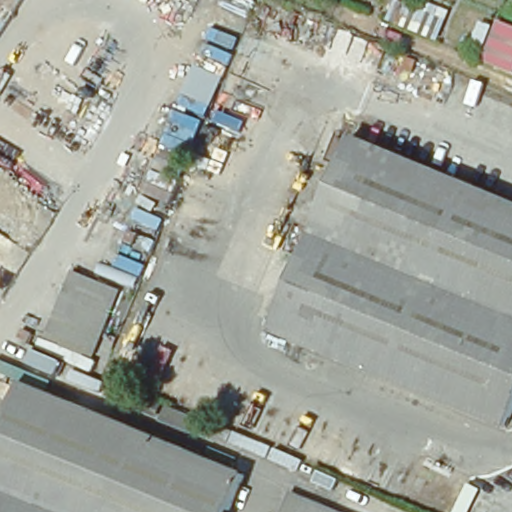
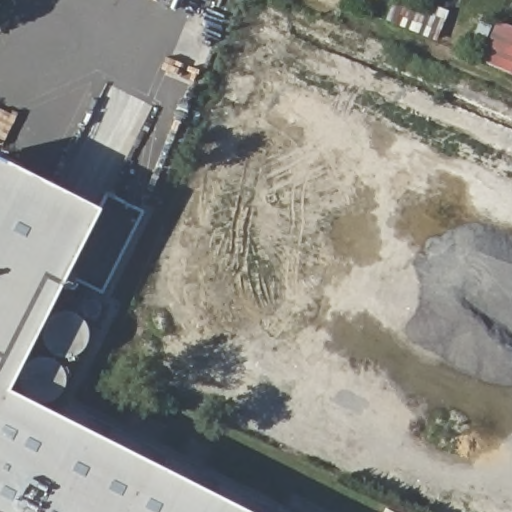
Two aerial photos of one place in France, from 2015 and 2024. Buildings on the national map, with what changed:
demolished [(18,0),(0,28),(0,0),(18,0)]
unchanged [(447,10),(435,38),(413,29),(425,0),(447,10)]
unchanged [(512,23),(512,70),(482,58),(499,18),(512,23)]
demolished [(512,211),(512,395),(491,436),(269,326),(362,137),(512,211)]
new [(99,199),(104,190),(143,209),(102,287),(66,271),(6,393),(250,512),(0,512),(0,150),(99,199)]
demolished [(91,355),(87,354),(81,366),(34,347),(42,335),(70,272),(117,290),(91,355)]
demolished [(20,383),(244,476),(229,512),(0,512),(0,431),(20,383)]
demolished [(302,499),(333,512),(296,512),(302,499)]

